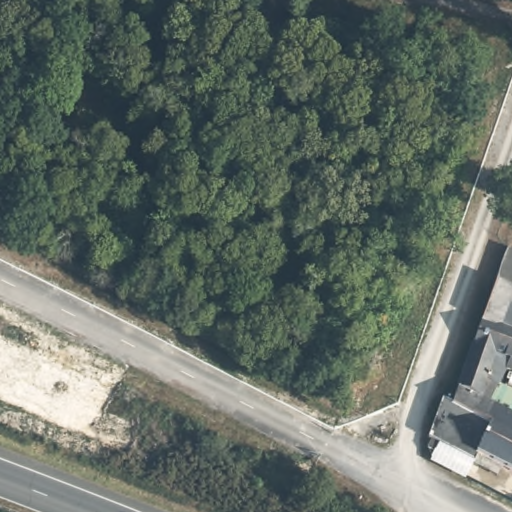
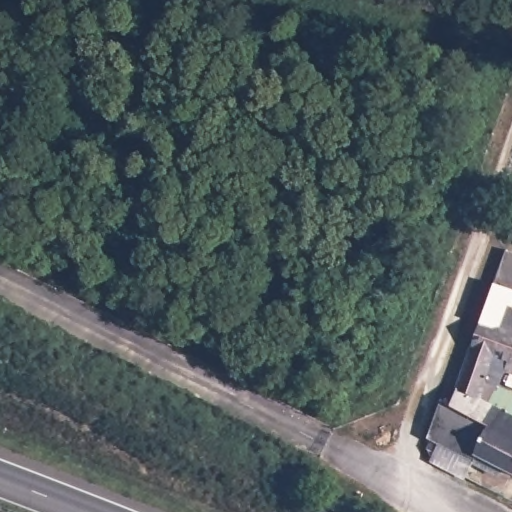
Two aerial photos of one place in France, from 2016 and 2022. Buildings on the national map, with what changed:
unchanged [(502,386),(512,391),(512,469),(502,464),(497,471),(492,468),(495,461),(477,453),(476,458),(436,438),(448,396),(457,400),(508,250),(512,251),(512,360),(502,386)]

